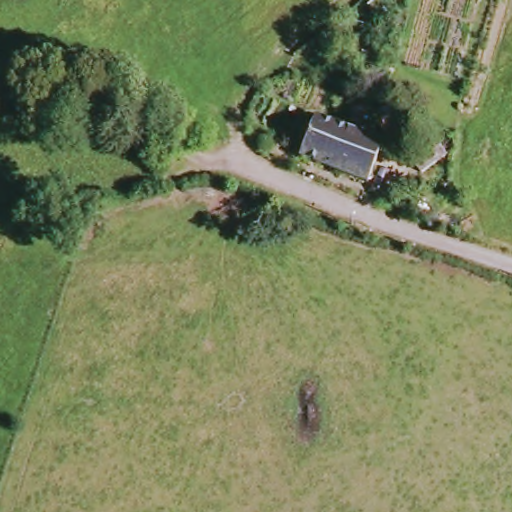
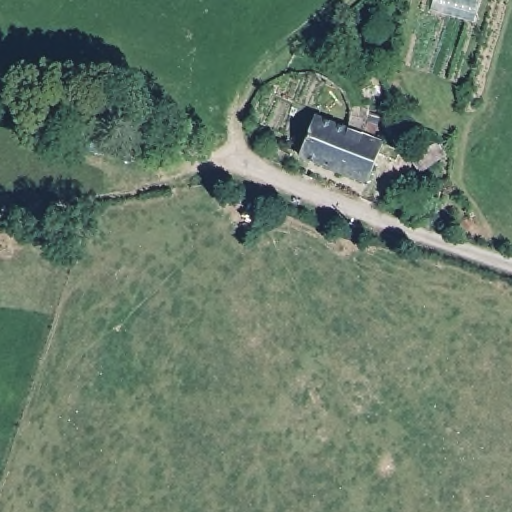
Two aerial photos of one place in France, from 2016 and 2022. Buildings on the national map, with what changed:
unchanged [(384,147),(368,187),(307,162),(323,122),(384,147)]
unchanged [(407,158),(431,141),(433,144),(440,154),(432,160),(416,171),(407,158)]

